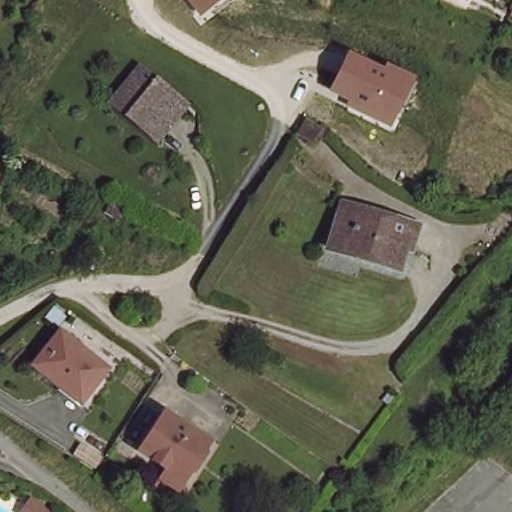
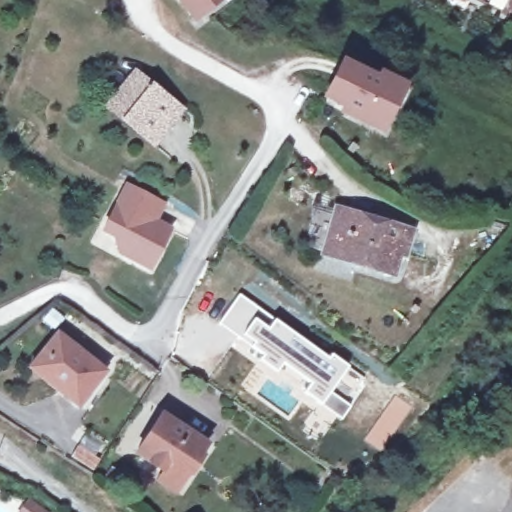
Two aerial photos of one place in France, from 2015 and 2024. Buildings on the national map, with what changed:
unchanged [(176,0),(222,0),(195,23),(176,0)]
unchanged [(509,0),(512,0),(512,13),(505,10),(509,0)]
unchanged [(408,85),(383,134),(339,113),(341,109),(322,99),(340,59),(376,75),(379,71),(408,85)]
unchanged [(168,107),(145,136),(143,138),(116,120),(117,119),(123,110),(108,97),(126,74),(168,107)]
new [(155,202),(162,207),(153,223),(169,232),(148,270),(118,254),(113,237),(103,231),(127,187),(155,202)]
unchanged [(402,226),(390,267),(323,246),(335,207),(402,226)]
new [(275,321),(328,359),(330,355),(346,366),(318,404),(303,394),(310,382),(282,363),(274,373),(258,362),(262,355),(251,346),(218,323),(240,292),(275,321)]
unchanged [(76,358),(96,373),(75,402),(28,367),(53,334),(79,352),(76,358)]
unchanged [(157,415),(204,445),(180,482),(135,455),(157,415)]
unchanged [(38,502),(52,512),(32,512),(38,502)]

